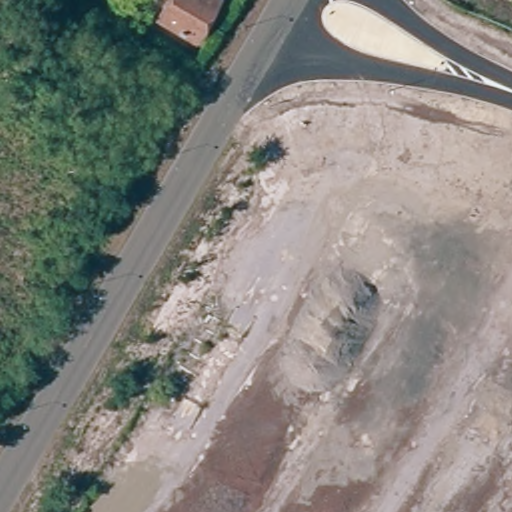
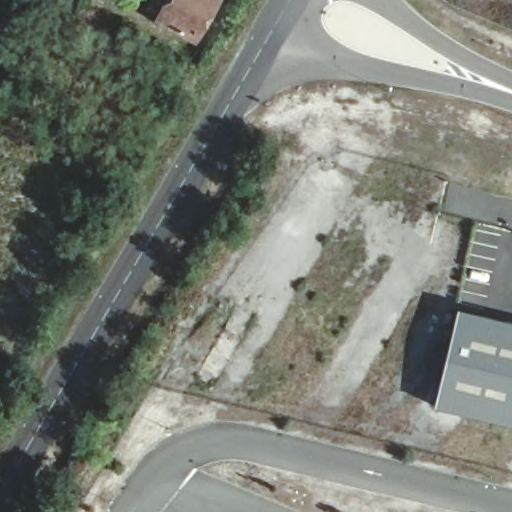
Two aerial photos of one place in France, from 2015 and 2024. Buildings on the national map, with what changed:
unchanged [(156,24),(169,1),(166,0),(209,0),(217,4),(194,45),(156,24)]
new [(512,320),(512,424),(435,406),(461,307),(512,320)]

